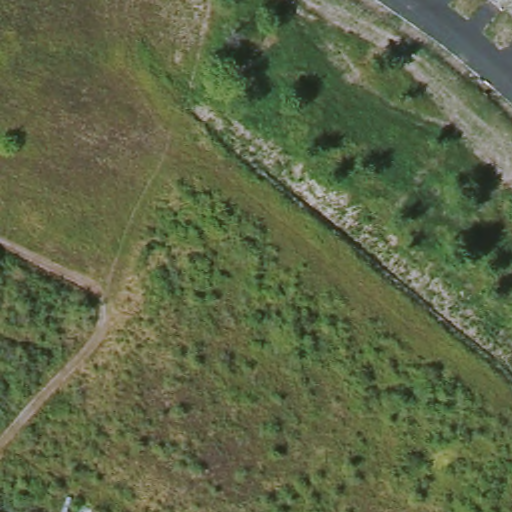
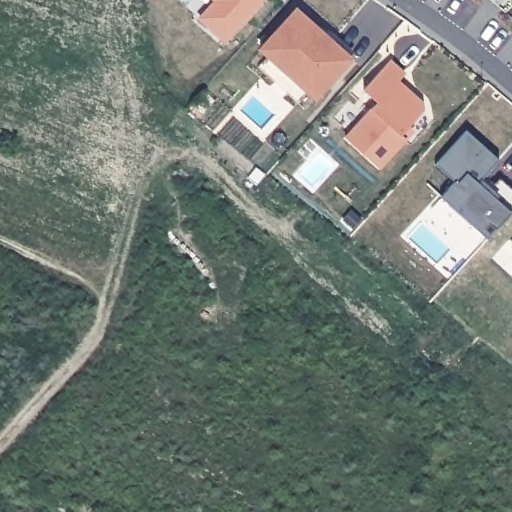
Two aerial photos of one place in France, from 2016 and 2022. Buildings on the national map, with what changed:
new [(200,18),(215,1),(214,0),(261,0),(225,40),(200,18)]
new [(296,8),(351,58),(315,98),(260,48),(296,8)]
new [(378,102),(363,89),(390,61),(404,74),(398,81),(422,103),(422,111),(401,134),(405,138),(378,168),(345,138),(378,102)]
new [(466,129),(498,159),(478,182),(487,190),(499,177),(512,189),(512,212),(488,239),(486,238),(440,196),(454,181),(435,164),(466,129)]

